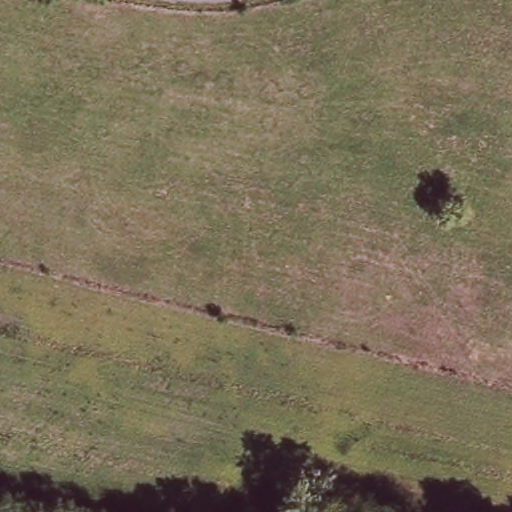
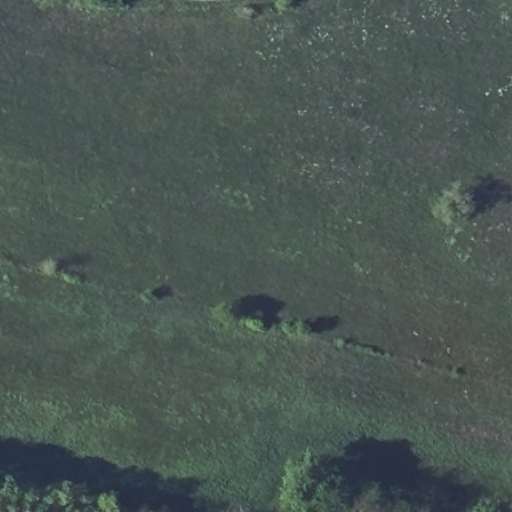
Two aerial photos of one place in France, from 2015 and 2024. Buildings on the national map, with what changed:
[]

